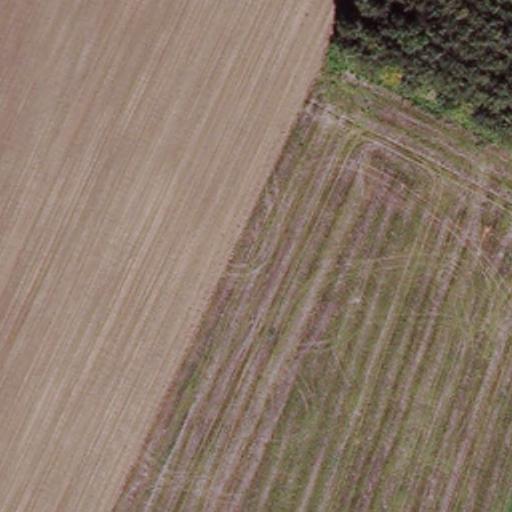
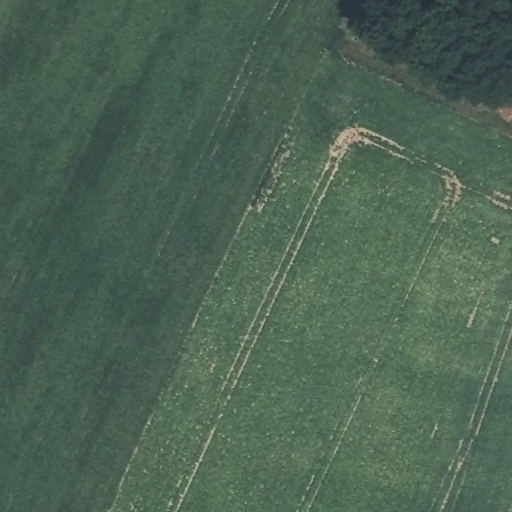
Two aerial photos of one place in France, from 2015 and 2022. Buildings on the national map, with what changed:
[]

